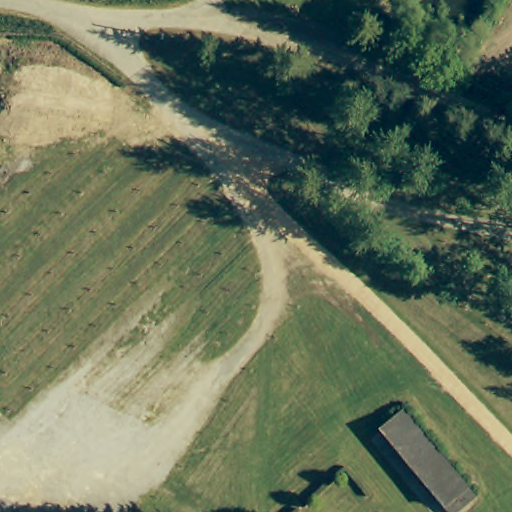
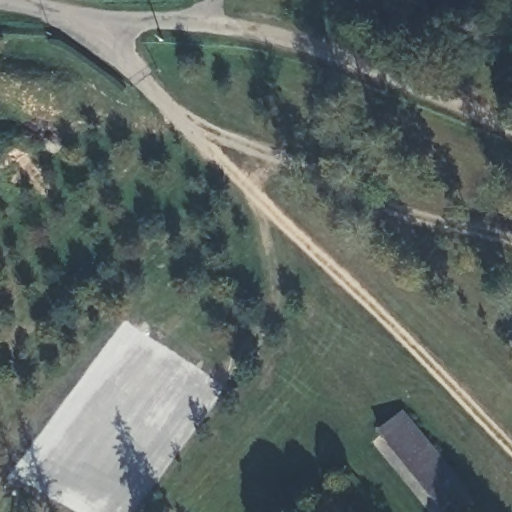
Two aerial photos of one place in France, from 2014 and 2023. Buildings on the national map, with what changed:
unchanged [(458,512),(450,512),(382,430),(405,411),(476,497),(458,512)]

